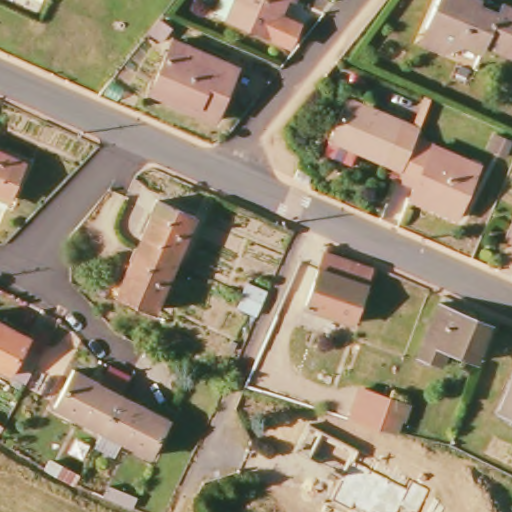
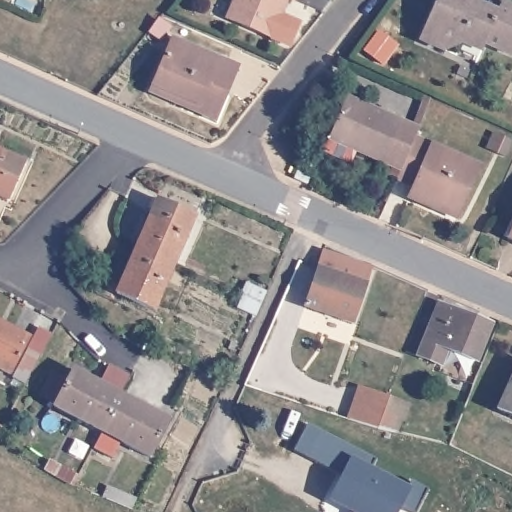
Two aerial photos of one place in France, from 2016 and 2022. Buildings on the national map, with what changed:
unchanged [(296,22),(287,43),(269,35),(226,16),(233,0),(283,0),(278,14),(296,22)]
unchanged [(415,43),(433,0),(473,0),(480,3),(455,60),(415,43)]
unchanged [(497,7),(512,14),(512,57),(510,60),(482,48),(472,68),(455,60),(480,3),(497,10),(497,7)]
unchanged [(169,32),(161,42),(152,35),(159,25),(169,32)]
unchanged [(237,70),(215,124),(150,96),(173,44),(237,70)]
unchanged [(345,99),(412,127),(423,99),(432,102),(420,130),(416,138),(402,171),(329,140),(345,99)]
unchanged [(402,171),(416,138),(479,165),(454,222),(406,200),(410,190),(397,183),(402,171)]
unchanged [(25,162),(9,200),(0,196),(0,151),(25,162)]
unchanged [(297,176),(308,181),(303,190),(293,186),(297,176)]
unchanged [(137,249),(158,201),(195,217),(175,265),(137,249)]
unchanged [(512,232),(512,242),(509,240),(512,232)]
unchanged [(155,311),(117,295),(137,249),(175,265),(155,311)]
unchanged [(353,324),(305,307),(324,251),(372,268),(353,324)]
unchanged [(244,294),(249,283),(267,292),(263,302),(257,314),(240,306),(244,294)]
unchanged [(477,361),(449,351),(442,366),(418,357),(440,305),(490,326),(477,361)]
unchanged [(25,337),(6,375),(0,372),(0,324),(25,337)]
unchanged [(269,341),(280,346),(273,365),(261,360),(269,341)]
unchanged [(12,377),(24,351),(36,357),(22,382),(12,377)]
unchanged [(102,431),(54,406),(73,369),(122,394),(102,431)]
unchanged [(512,380),(512,417),(499,410),(512,380)]
unchanged [(102,431),(122,394),(170,418),(151,456),(120,441),(112,457),(94,448),(102,431)]
unchanged [(359,408),(382,413),(387,395),(412,403),(405,423),(400,426),(396,437),(354,425),(359,408)]
new [(308,426),(355,451),(353,461),(405,490),(410,480),(428,489),(417,511),(400,503),(396,512),(358,512),(332,499),(344,477),(295,451),(308,426)]
unchanged [(3,429),(0,434),(0,428),(3,429)]
unchanged [(105,499),(110,488),(137,501),(133,511),(105,499)]

